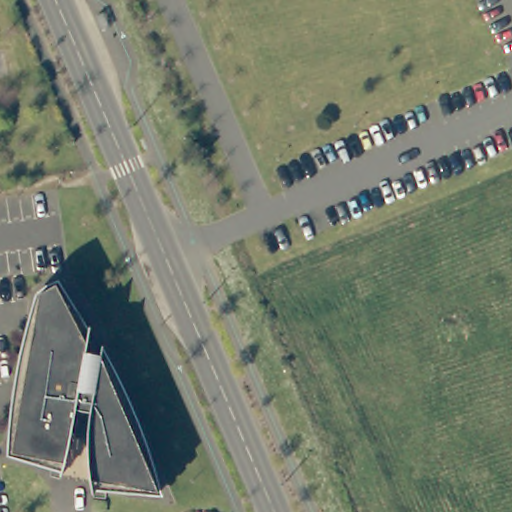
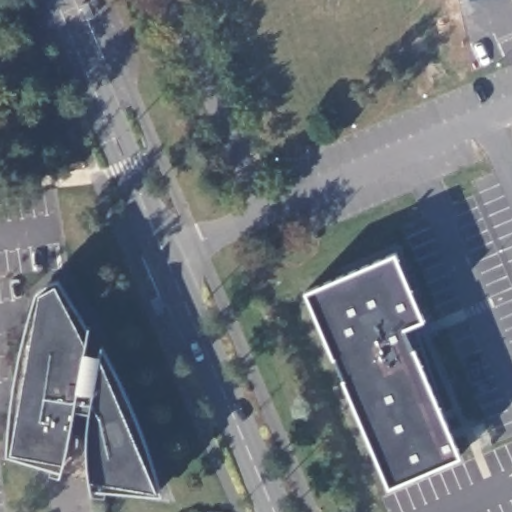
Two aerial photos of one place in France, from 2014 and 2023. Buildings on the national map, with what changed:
new [(395,255),(424,323),(405,331),(414,352),(414,351),(460,460),(388,490),(304,294),(395,255)]
unchanged [(10,454),(39,292),(59,284),(88,346),(79,395),(93,397),(101,356),(134,434),(158,492),(89,479),(88,455),(89,434),(71,432),(64,463),(10,454)]

